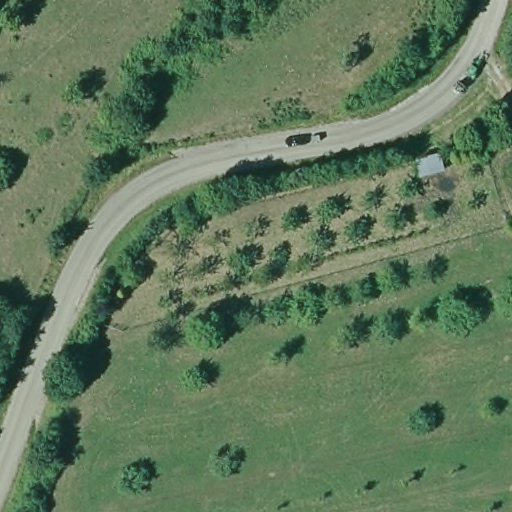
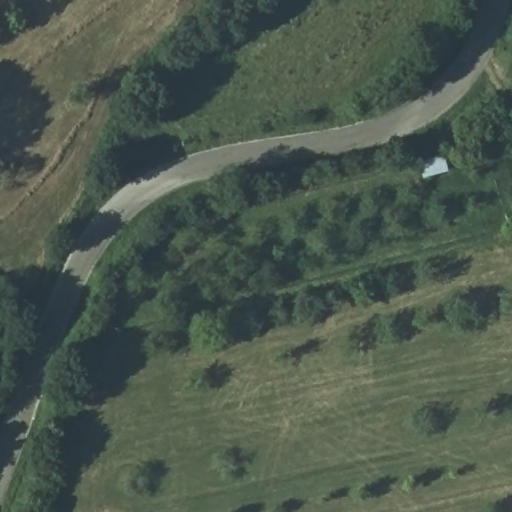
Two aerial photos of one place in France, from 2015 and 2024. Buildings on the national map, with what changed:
unchanged [(450,174),(423,181),(420,161),(446,157),(450,174)]

